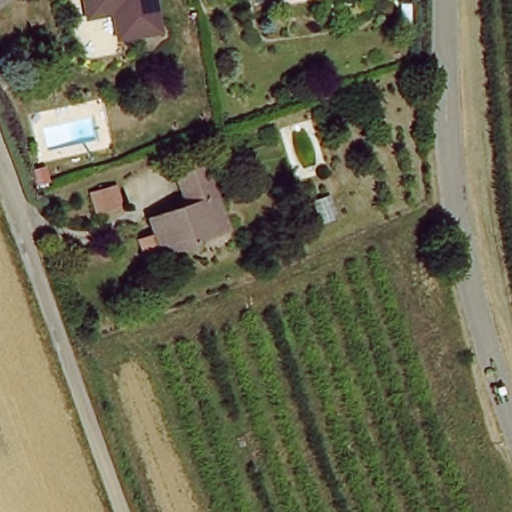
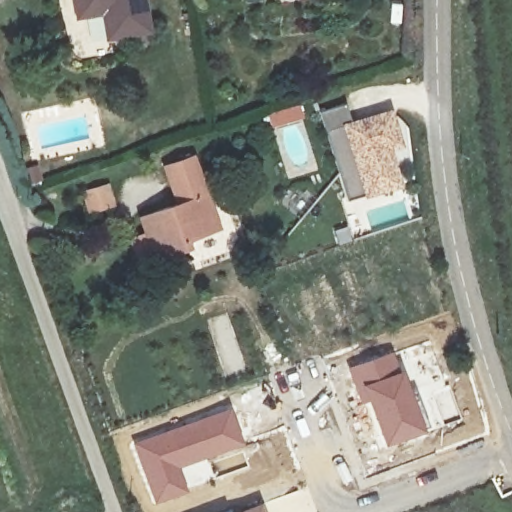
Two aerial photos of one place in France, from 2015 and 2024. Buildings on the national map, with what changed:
unchanged [(77,7),(76,0),(143,0),(147,30),(109,35),(105,5),(77,7)]
new [(301,106),(305,117),(275,127),(271,117),(301,106)]
new [(403,146),(392,148),(403,187),(365,200),(364,195),(347,201),(321,113),(346,107),(350,122),(392,110),(403,146)]
unchanged [(208,234),(184,240),(187,249),(150,260),(136,219),(176,206),(164,171),(192,160),(206,196),(219,231),(208,234)]
unchanged [(80,196),(108,187),(114,210),(87,219),(80,196)]
new [(395,350),(427,426),(383,444),(367,400),(359,403),(347,367),(395,350)]
new [(450,387),(460,415),(443,422),(432,395),(450,387)]
new [(188,490),(189,493),(155,505),(132,442),(232,406),(245,443),(209,458),(216,480),(188,490)]
new [(264,512),(235,512),(261,503),(264,512)]

